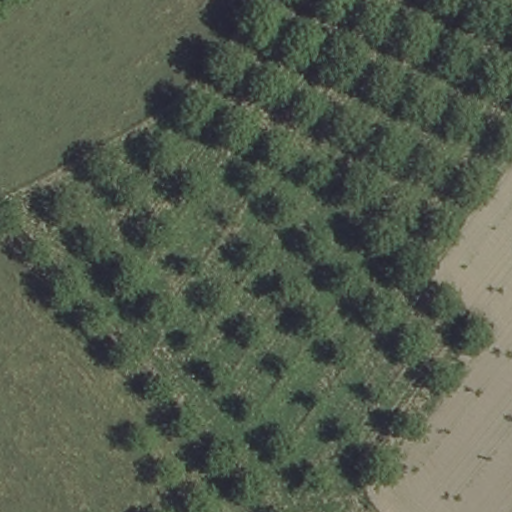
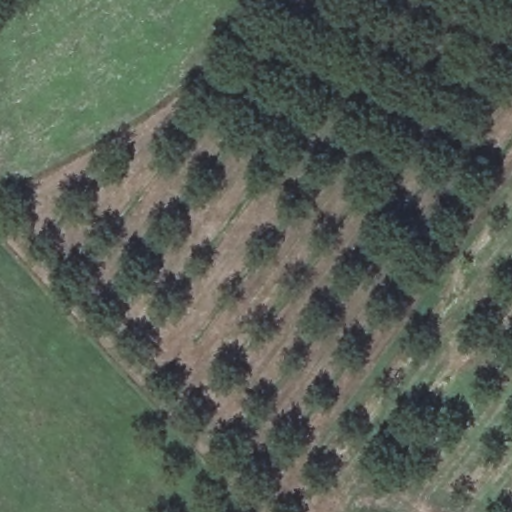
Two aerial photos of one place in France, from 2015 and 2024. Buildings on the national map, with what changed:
unchanged [(187,95),(205,74),(225,89),(209,106),(187,95)]

